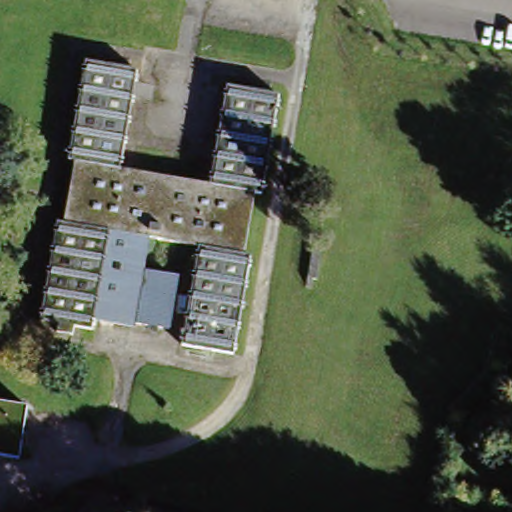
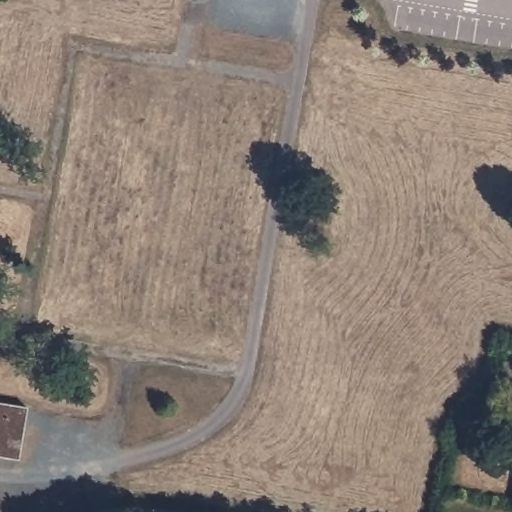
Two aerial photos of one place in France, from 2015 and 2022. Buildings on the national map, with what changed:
demolished [(139,69),(123,168),(212,184),(229,84),(282,95),(264,194),(255,192),(245,248),(252,249),(235,353),(185,344),(200,242),(112,224),(105,260),(95,317),(94,328),(40,318),(57,216),(65,217),(75,159),(70,158),(87,59),(139,69)]
demolished [(105,260),(175,273),(180,279),(171,327),(137,320),(136,324),(95,317),(105,260)]
unchanged [(19,409),(10,459),(0,458),(0,405),(19,409)]

